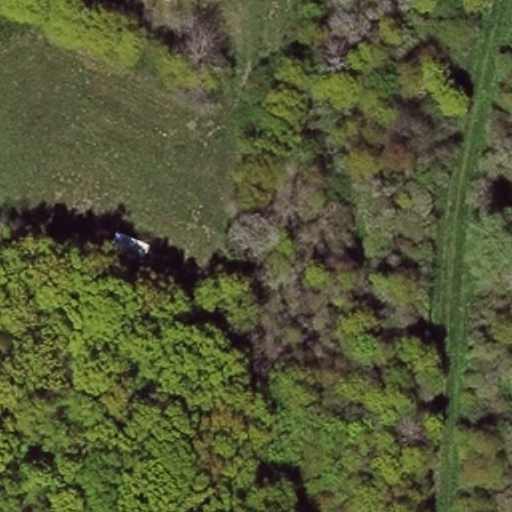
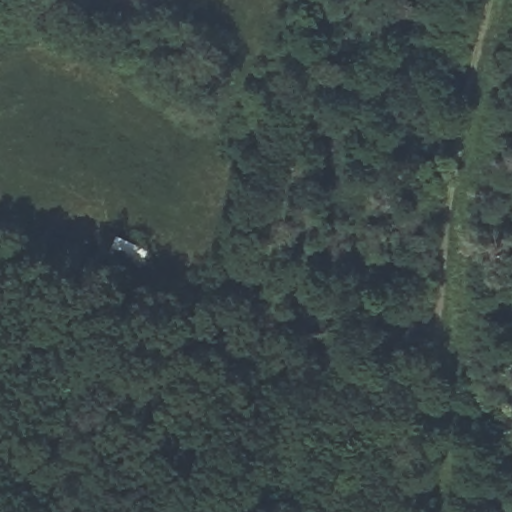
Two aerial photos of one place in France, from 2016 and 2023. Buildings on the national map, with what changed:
unchanged [(110,250),(118,233),(152,250),(143,265),(110,250)]

